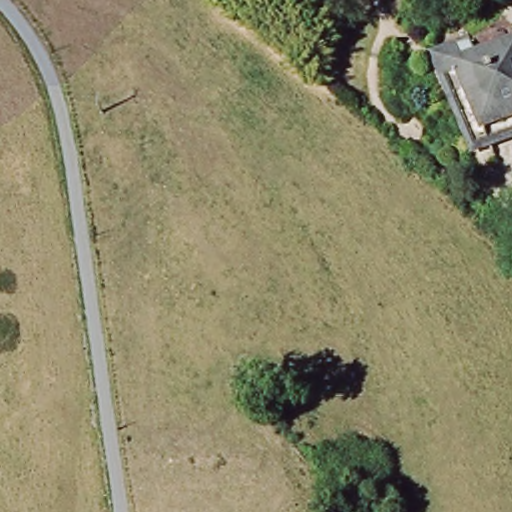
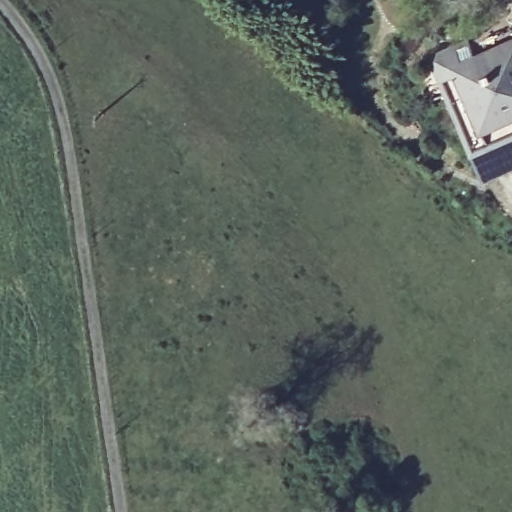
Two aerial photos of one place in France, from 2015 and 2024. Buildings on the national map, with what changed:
unchanged [(512,35),(512,122),(481,138),(458,85),(451,87),(444,91),(429,58),(437,54),(467,42),(471,51),(512,35)]

